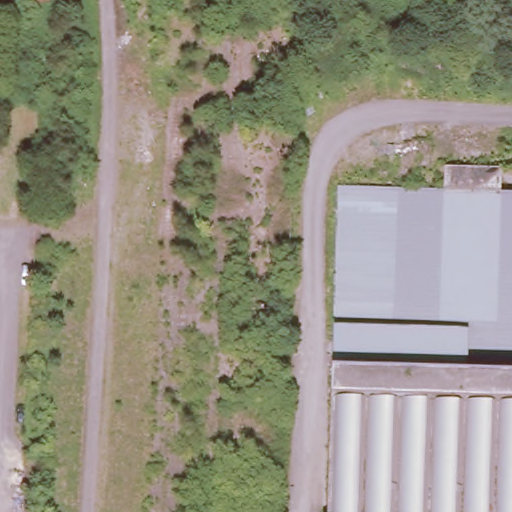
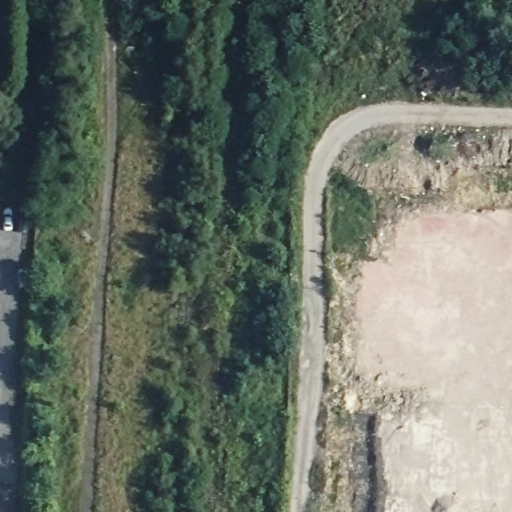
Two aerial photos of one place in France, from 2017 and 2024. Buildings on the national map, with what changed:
demolished [(338,185),(512,190),(512,512),(329,512),(332,397),(338,185)]

